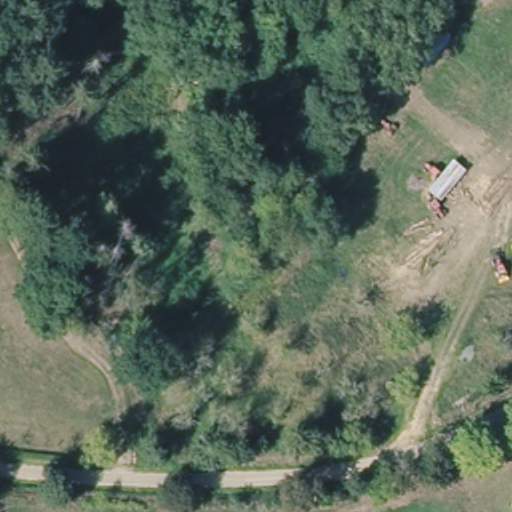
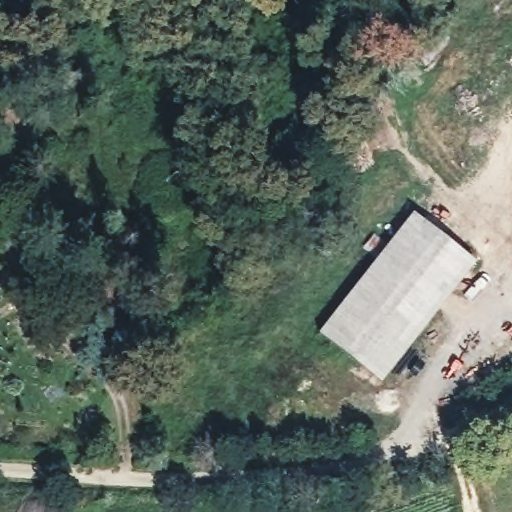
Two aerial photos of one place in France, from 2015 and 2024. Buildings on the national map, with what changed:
new [(377,379),(316,331),(410,212),(471,260),(377,379)]

